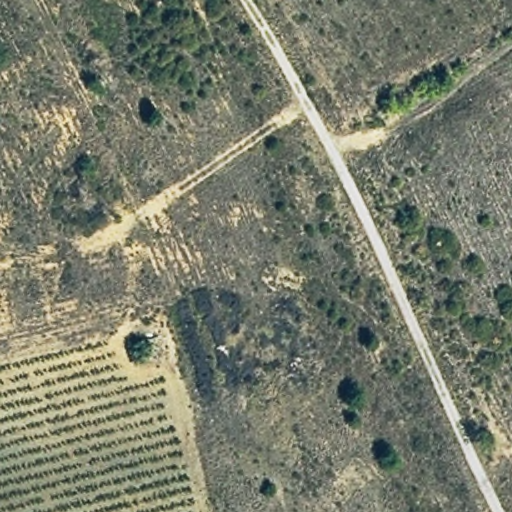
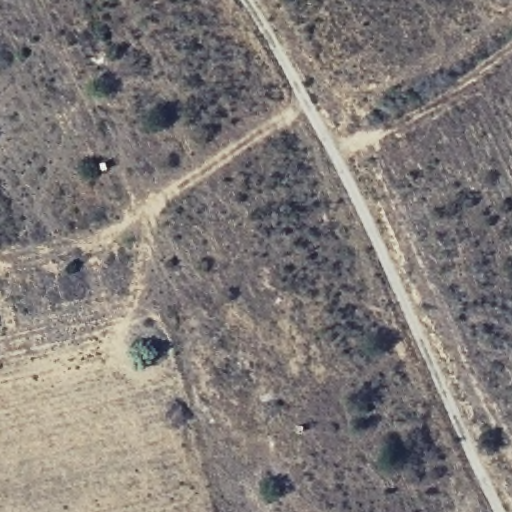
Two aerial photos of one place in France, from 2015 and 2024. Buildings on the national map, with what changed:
unchanged [(160,356),(146,360),(139,340),(155,338),(160,356)]

